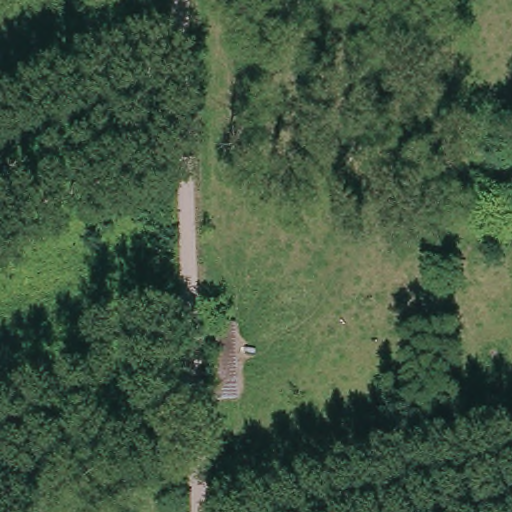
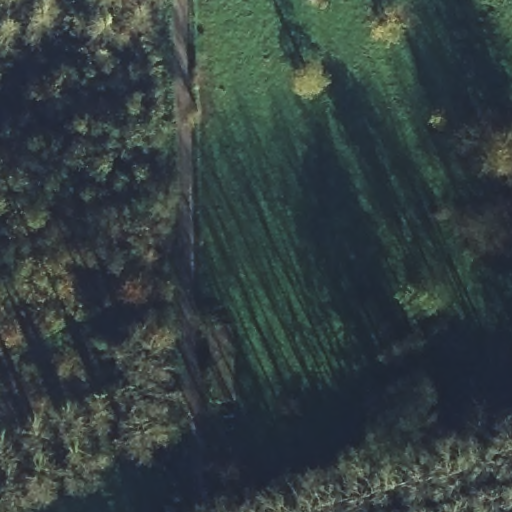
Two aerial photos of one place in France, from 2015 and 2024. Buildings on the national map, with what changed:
unchanged [(228,399),(222,322),(243,321),(247,398),(228,399)]

